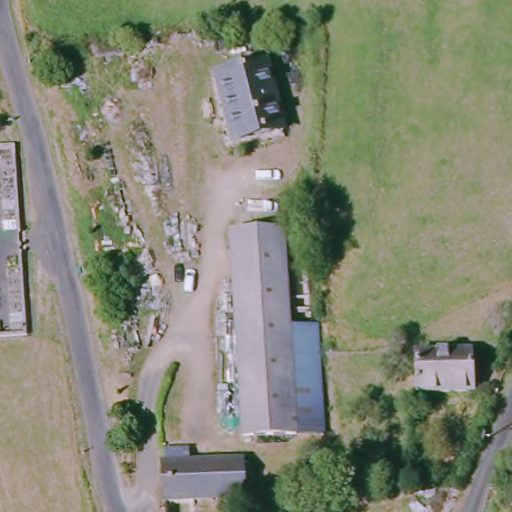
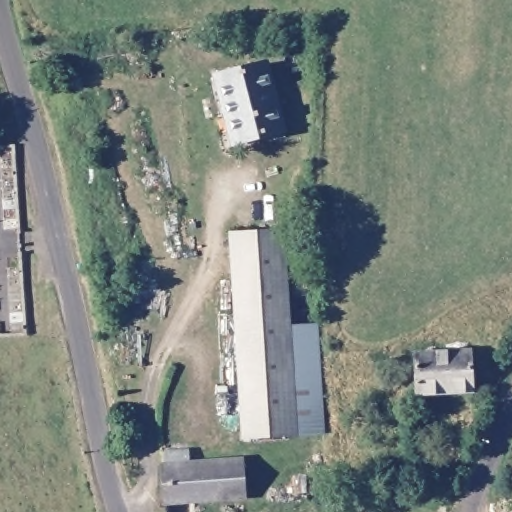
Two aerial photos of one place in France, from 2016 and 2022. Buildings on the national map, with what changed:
unchanged [(290,144),(231,155),(219,78),(277,67),(290,144)]
unchanged [(248,443),(244,338),(240,243),(288,238),(292,330),(297,439),(248,443)]
unchanged [(292,330),(320,329),(325,436),(297,439),(292,330)]
unchanged [(476,391),(420,393),(419,358),(475,356),(476,391)]
unchanged [(247,499),(164,504),(164,465),(163,452),(190,451),(190,464),(246,462),(247,499)]

